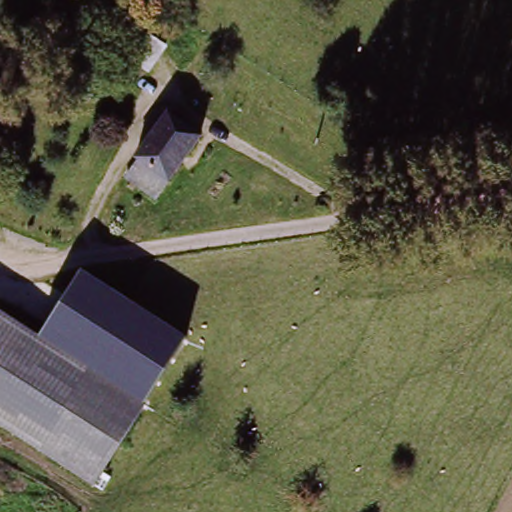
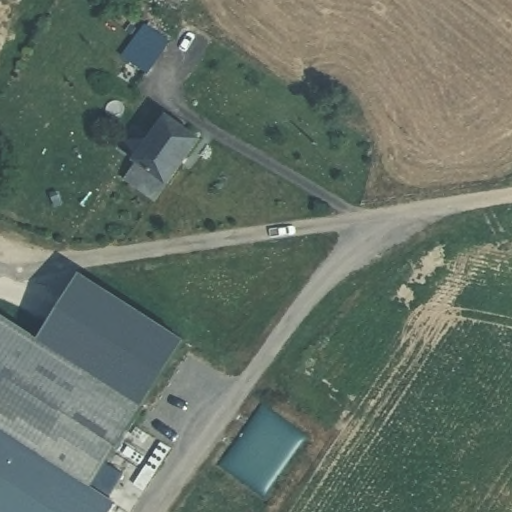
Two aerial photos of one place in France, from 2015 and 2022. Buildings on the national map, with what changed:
unchanged [(171,48),(151,76),(124,58),(144,30),(171,48)]
unchanged [(140,173),(144,166),(131,156),(161,113),(189,134),(155,184),(140,173)]
unchanged [(80,273),(186,339),(146,404),(123,389),(96,374),(93,372),(39,338),(80,273)]
unchanged [(40,454),(0,428),(0,313),(93,372),(40,454)]
unchanged [(146,404),(94,488),(40,454),(93,372),(146,404)]
new [(94,488),(118,503),(111,512),(0,512),(0,428),(40,454),(94,488)]

